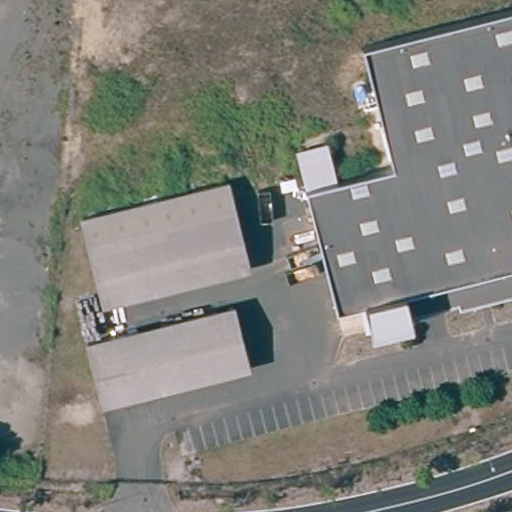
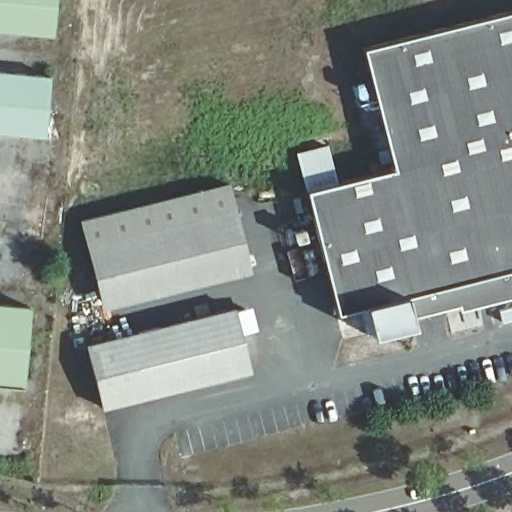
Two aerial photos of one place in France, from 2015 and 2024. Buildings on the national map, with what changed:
new [(57,0),(54,35),(0,30),(0,0),(57,0)]
unchanged [(408,319),(410,326),(368,336),(367,333),(362,335),(356,308),(333,314),(303,191),(390,169),(359,49),(512,10),(512,298),(491,303),(456,312),(455,306),(408,319)]
new [(53,80),(47,140),(0,136),(0,76),(53,80)]
unchanged [(250,280),(106,317),(85,232),(229,196),(250,280)]
new [(23,385),(0,383),(0,303),(30,305),(23,385)]
unchanged [(245,371),(100,407),(85,347),(230,310),(245,371)]

